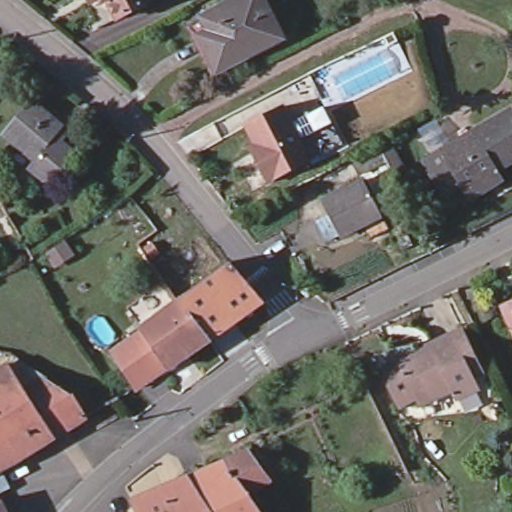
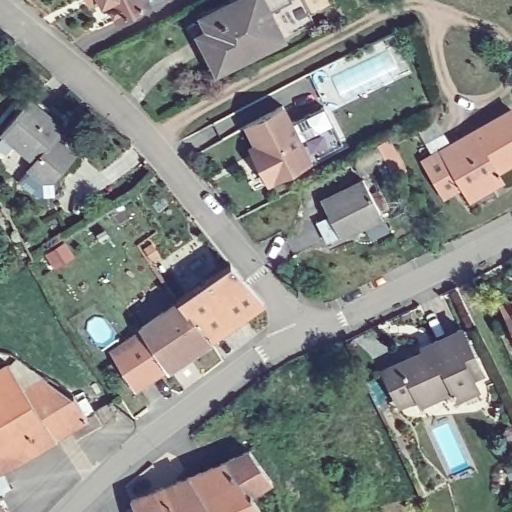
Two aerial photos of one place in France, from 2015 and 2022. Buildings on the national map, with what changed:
unchanged [(90,18),(82,4),(74,9),(69,0),(147,0),(152,7),(138,14),(106,34),(95,15),(90,18)]
unchanged [(241,64),(235,53),(222,59),(216,59),(212,57),(209,53),(203,41),(213,36),(207,20),(251,0),(265,0),(283,44),(241,64)]
unchanged [(67,147),(47,172),(36,171),(25,161),(30,157),(31,154),(0,127),(27,96),(57,123),(50,132),(60,140),(67,147)]
unchanged [(264,180),(257,167),(251,156),(257,153),(246,132),(240,121),(277,102),(282,112),(300,144),(307,157),(264,180)]
unchanged [(477,170),(482,180),(460,190),(453,176),(441,182),(423,144),(435,139),(510,106),(512,111),(512,154),(477,170)]
unchanged [(388,152),(376,158),(367,140),(380,133),(388,152)]
unchanged [(367,235),(360,220),(336,233),(335,230),(322,236),(312,215),(324,209),(317,195),(358,174),(377,211),(383,225),(367,235)]
unchanged [(232,259),(264,298),(210,337),(179,298),(232,259)]
unchanged [(302,286),(297,290),(293,283),(299,279),(302,286)]
unchanged [(499,310),(495,303),(512,296),(512,339),(499,310)]
unchanged [(168,369),(166,366),(141,331),(138,328),(179,298),(210,337),(168,369)]
unchanged [(467,368),(473,381),(452,391),(447,382),(417,398),(412,389),(395,398),(378,364),(426,341),(424,336),(456,321),(470,351),(477,364),(467,368)]
unchanged [(141,331),(166,366),(135,389),(110,354),(141,331)]
unchanged [(12,378),(29,367),(37,372),(70,391),(71,390),(85,413),(60,427),(48,435),(0,463),(0,365),(2,363),(12,378)]
unchanged [(184,471),(245,444),(268,476),(247,489),(262,512),(212,512),(184,471)]
unchanged [(212,512),(170,512),(166,505),(154,484),(158,483),(184,471),(212,512)]
unchanged [(0,486),(0,478),(3,484),(0,486)]
unchanged [(127,496),(154,484),(166,505),(170,512),(135,512),(127,496)]

